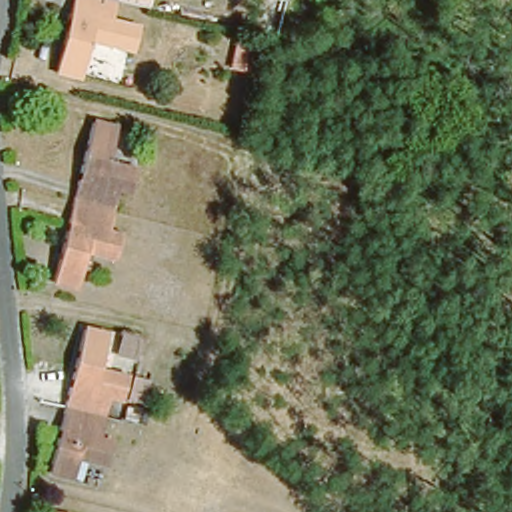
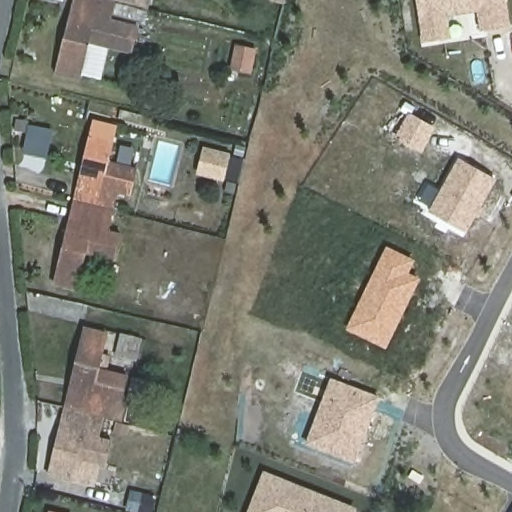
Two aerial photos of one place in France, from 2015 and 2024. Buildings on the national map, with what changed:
unchanged [(113,19),(139,25),(134,50),(90,40),(83,78),(58,72),(75,0),(117,0),(113,19)]
new [(510,26),(480,31),(477,11),(446,15),(449,39),(422,43),(416,0),(507,0),(510,26)]
unchanged [(88,122),(112,128),(104,164),(147,176),(141,200),(115,194),(110,211),(69,201),(88,122)]
new [(205,150),(227,156),(222,177),(200,172),(205,150)]
new [(478,215),(481,217),(480,219),(476,217),(468,233),(429,211),(459,158),(497,180),(478,215)]
unchanged [(110,211),(106,228),(132,235),(126,260),(85,250),(75,286),(50,279),(69,201),(110,211)]
new [(347,330),(386,246),(415,260),(420,279),(386,349),(347,330)]
unchanged [(65,406),(84,331),(108,338),(100,368),(130,376),(123,399),(111,396),(106,417),(65,406)]
new [(380,397),(355,464),(305,445),(330,378),(380,397)]
unchanged [(101,435),(114,439),(107,464),(79,456),(74,478),(49,471),(65,406),(106,417),(101,435)]
new [(356,508),(355,512),(247,512),(262,471),(356,508)]

